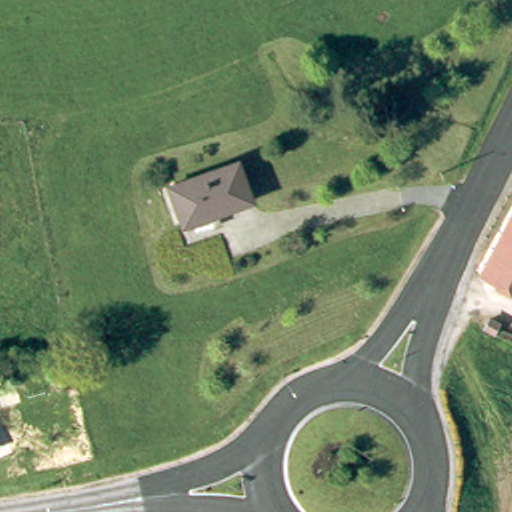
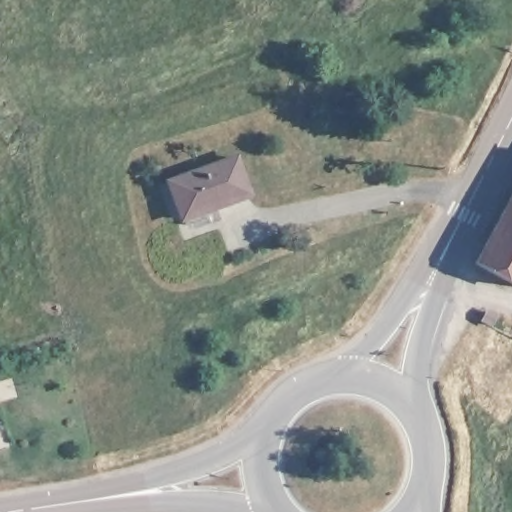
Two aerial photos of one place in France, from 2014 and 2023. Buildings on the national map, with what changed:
unchanged [(246,197),(178,219),(166,182),(234,160),(246,197)]
unchanged [(512,205),(512,282),(480,265),(512,205)]

